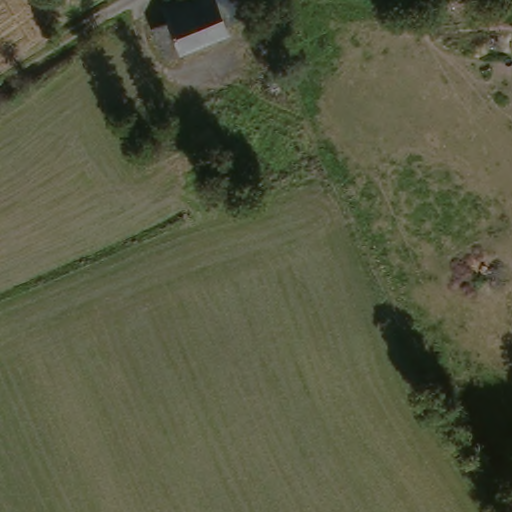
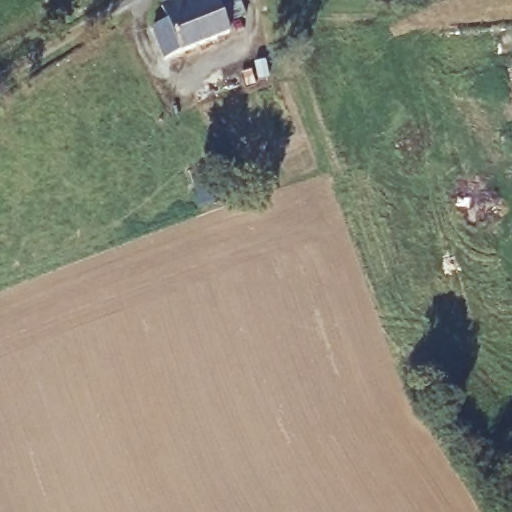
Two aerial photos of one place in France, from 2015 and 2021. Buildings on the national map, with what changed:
unchanged [(242,25),(228,31),(232,40),(171,66),(156,31),(170,25),(165,12),(195,0),(232,0),(242,25)]

